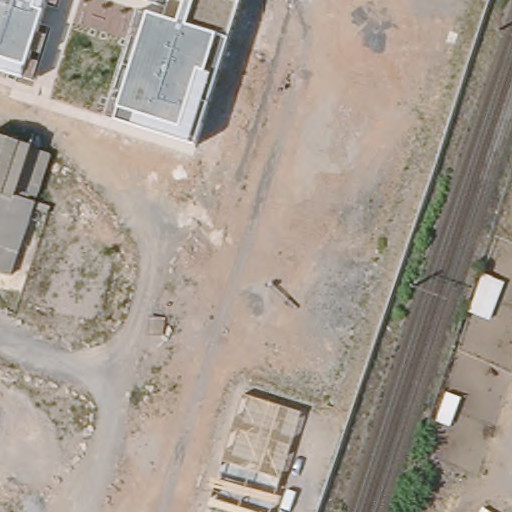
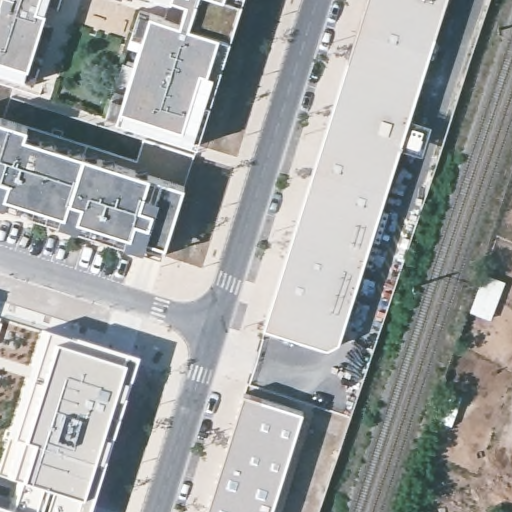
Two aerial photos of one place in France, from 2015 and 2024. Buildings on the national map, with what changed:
unchanged [(61,0),(58,9),(50,6),(42,33),(50,35),(35,82),(0,71),(0,0),(61,0)]
unchanged [(106,118),(113,91),(124,94),(142,38),(135,36),(142,11),(167,19),(172,1),(171,0),(243,0),(197,147),(106,118)]
new [(328,347),(263,326),(365,0),(447,0),(338,341),(328,347)]
demolished [(272,98),(413,141),(373,268),(234,221),(272,98)]
new [(27,127),(25,136),(150,176),(185,186),(164,257),(5,206),(0,204),(0,119),(27,127)]
demolished [(30,145),(29,148),(47,154),(32,199),(0,187),(0,135),(30,145)]
demolished [(32,199),(15,252),(7,275),(0,273),(0,187),(32,199)]
demolished [(213,287),(219,268),(234,221),(373,268),(351,333),(213,287)]
demolished [(335,382),(278,363),(292,317),(212,290),(213,287),(351,333),(335,382)]
new [(5,505),(12,482),(0,477),(0,458),(42,327),(133,356),(85,512),(0,512),(0,503),(5,505)]
new [(302,411),(270,512),(205,512),(244,393),(302,411)]
unchanged [(409,479),(414,464),(431,470),(426,485),(409,479)]

